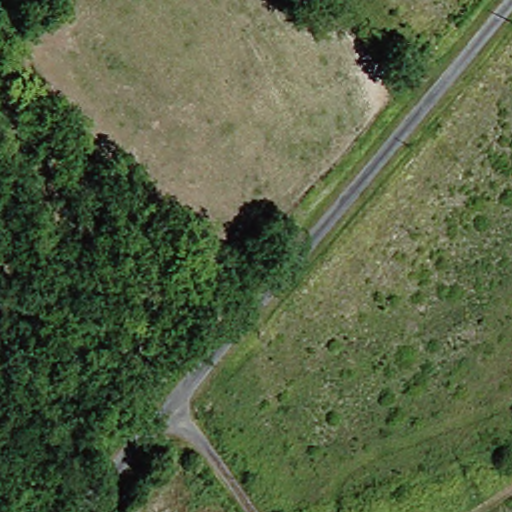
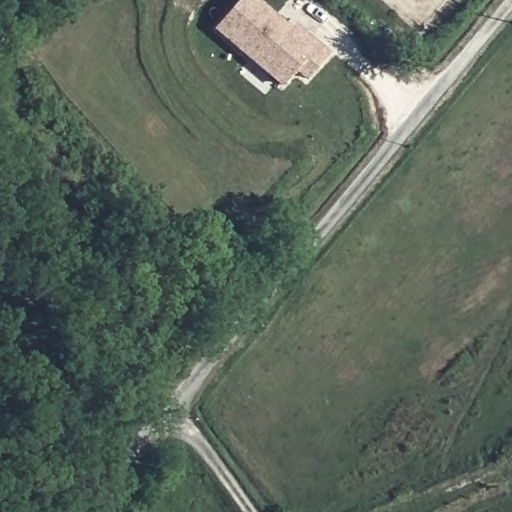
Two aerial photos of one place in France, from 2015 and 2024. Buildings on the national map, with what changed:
new [(292,27),(296,23),(331,54),(307,82),(296,73),(284,87),(217,28),(241,0),(260,0),(292,27)]

